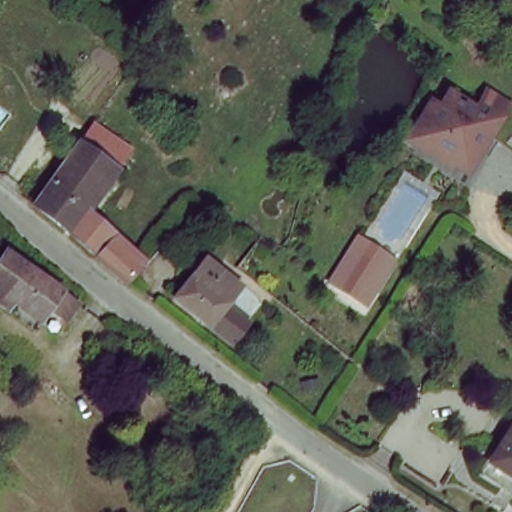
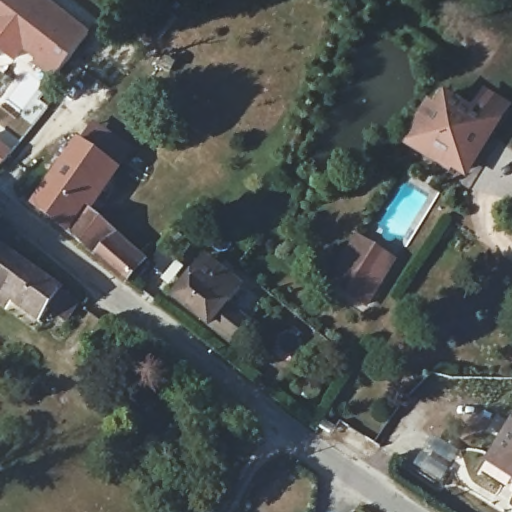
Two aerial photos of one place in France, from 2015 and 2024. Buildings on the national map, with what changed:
new [(0,28),(0,4),(3,0),(55,0),(92,29),(55,78),(36,63),(40,58),(0,28)]
unchanged [(472,176),(458,167),(457,171),(437,158),(415,145),(428,123),(437,108),(445,113),(454,99),(481,116),(492,99),(492,97),(512,110),(512,111),(510,114),(492,143),(485,156),(472,176)]
unchanged [(128,278),(97,251),(37,199),(83,140),(116,167),(87,208),(112,228),(108,234),(140,261),(128,278)]
unchanged [(376,292),(350,275),(341,269),(358,242),(367,248),(393,265),(376,292)]
unchanged [(64,314),(47,302),(37,317),(0,291),(0,253),(6,244),(60,284),(77,295),(64,314)]
unchanged [(238,343),(213,326),(172,298),(189,275),(194,278),(205,260),(242,286),(233,299),(255,314),(238,343)]
unchanged [(512,422),(512,469),(492,454),(512,422)]
unchanged [(510,475),(512,472),(512,477),(510,475)]

